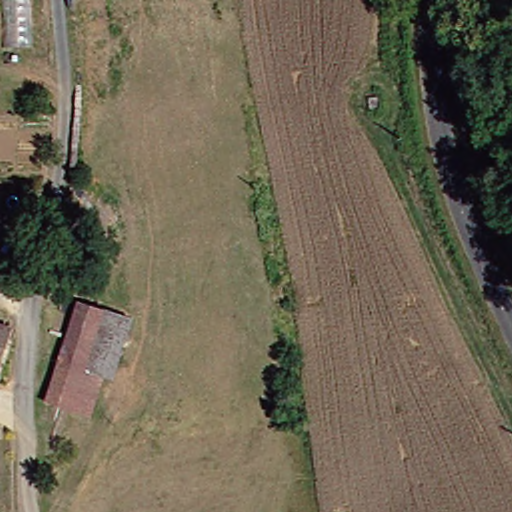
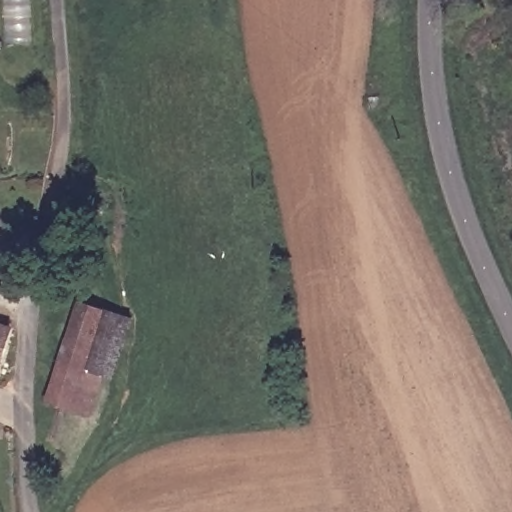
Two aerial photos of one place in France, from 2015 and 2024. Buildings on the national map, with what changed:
unchanged [(119,379),(106,376),(94,415),(52,400),(85,302),(111,310),(137,317),(119,379)]
unchanged [(0,378),(0,322),(14,326),(0,378)]

